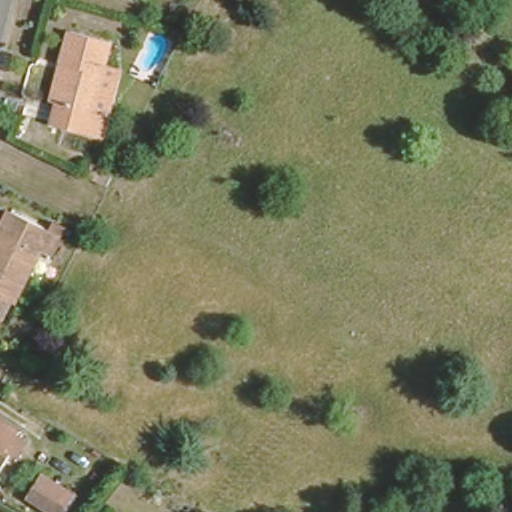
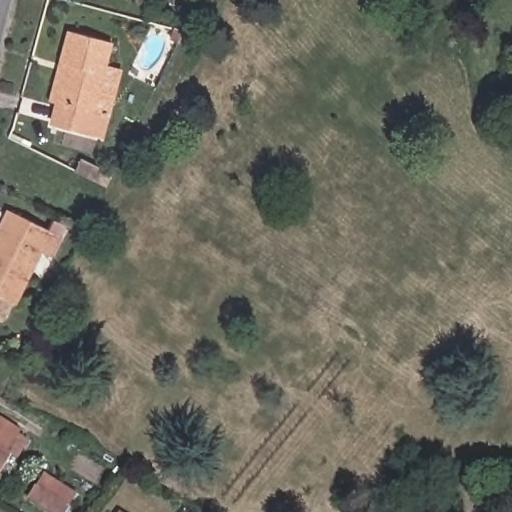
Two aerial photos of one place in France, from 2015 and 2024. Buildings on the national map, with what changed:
unchanged [(106,111),(100,134),(52,121),(58,100),(49,97),(59,60),(68,27),(111,39),(103,67),(117,70),(106,111)]
unchanged [(9,210),(60,236),(51,253),(39,247),(11,302),(8,301),(0,316),(0,228),(9,210)]
unchanged [(0,473),(0,422),(18,432),(26,438),(13,458),(11,456),(0,473)]
unchanged [(28,495),(42,471),(76,491),(63,512),(55,512),(28,495)]

